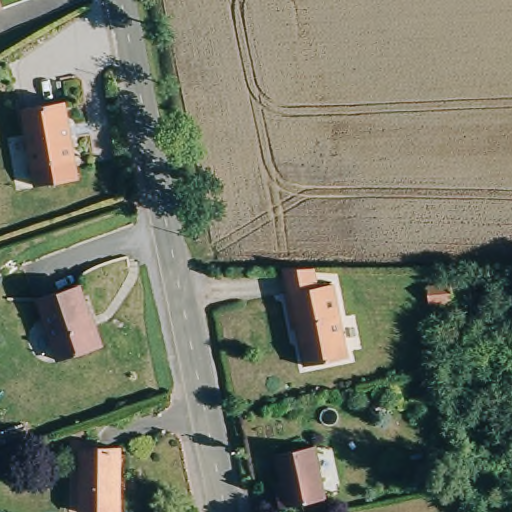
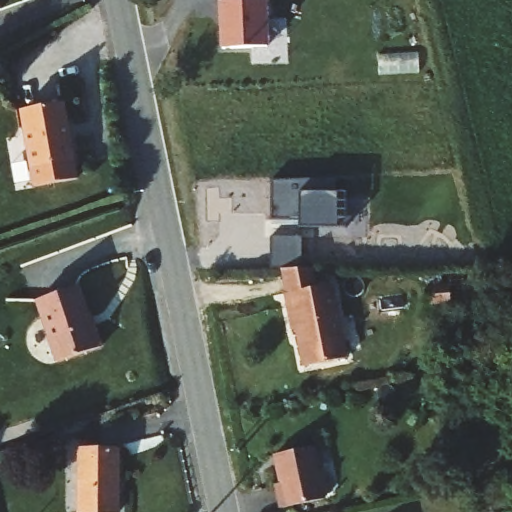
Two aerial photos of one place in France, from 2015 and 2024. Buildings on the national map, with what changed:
new [(225,2),(225,0),(253,0),(253,2),(265,1),(266,49),(222,51),(221,31),(221,20),(220,2),(225,2)]
unchanged [(63,102),(73,161),(31,168),(20,109),(63,102)]
new [(337,178),(338,192),(347,192),(348,229),(299,228),(300,220),(271,220),(271,181),(337,178)]
unchanged [(318,269),(321,290),(338,286),(351,357),(309,367),(301,331),(298,332),(290,296),(292,295),(287,268),(318,269)]
unchanged [(449,284),(451,302),(428,305),(427,286),(449,284)]
unchanged [(78,286),(90,326),(93,325),(100,347),(58,362),(36,300),(78,286)]
unchanged [(34,450),(0,462),(0,451),(31,440),(34,450)]
unchanged [(318,442),(329,494),(286,503),(281,480),(285,479),(279,451),(318,442)]
unchanged [(78,449),(119,450),(119,512),(78,512),(78,449)]

